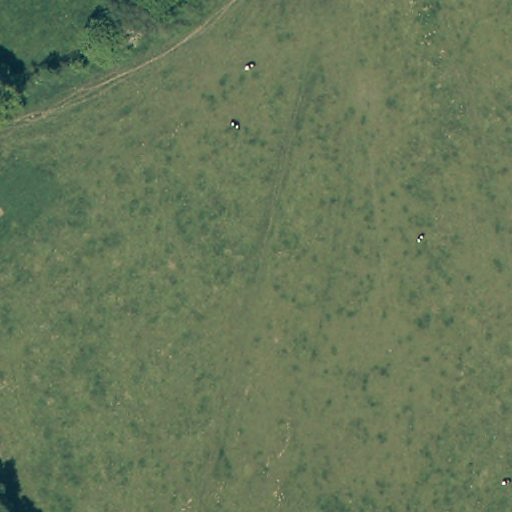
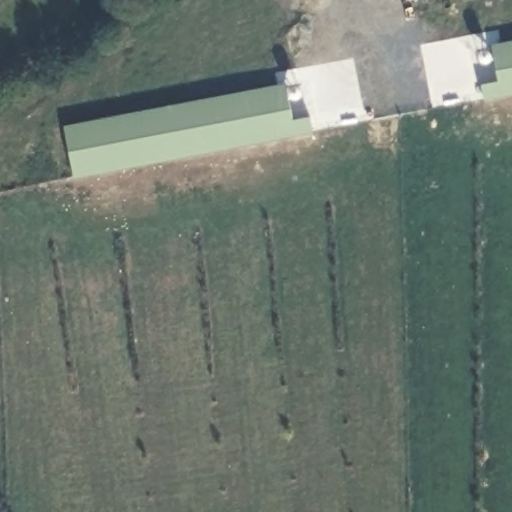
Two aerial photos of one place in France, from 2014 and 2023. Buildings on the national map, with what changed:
new [(484,104),(481,87),(499,84),(492,47),(512,44),(512,98),(484,104)]
new [(293,122),(311,119),(316,137),(76,180),(65,127),(287,85),(293,122)]

